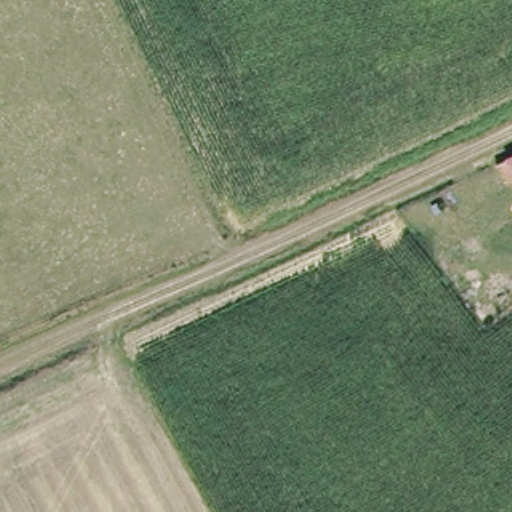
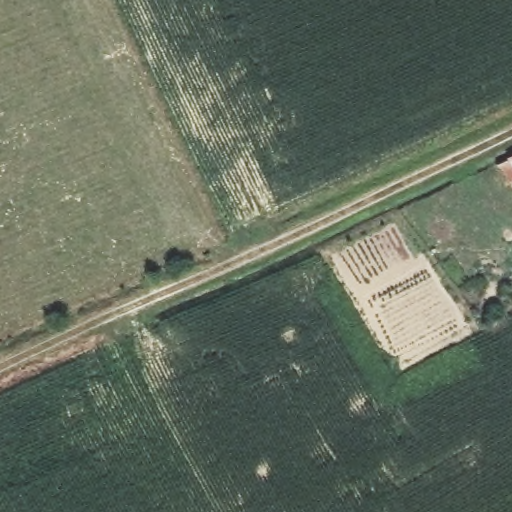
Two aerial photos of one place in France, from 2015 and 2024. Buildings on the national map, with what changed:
unchanged [(512,153),(512,168),(505,157),(512,153)]

